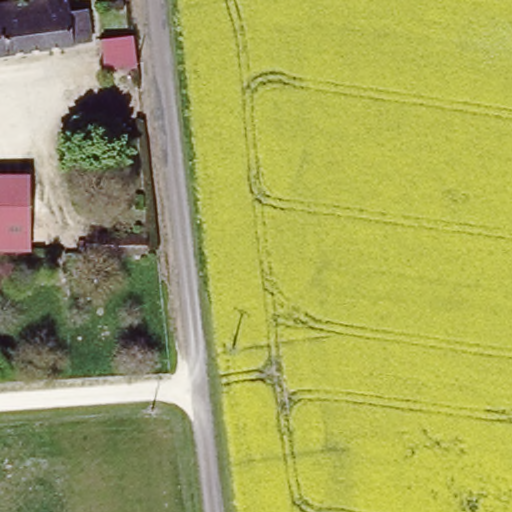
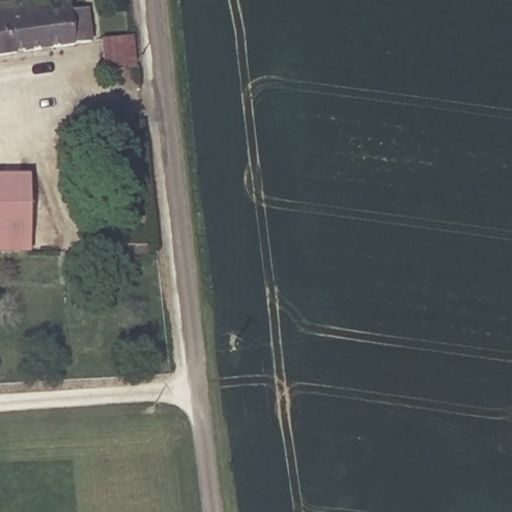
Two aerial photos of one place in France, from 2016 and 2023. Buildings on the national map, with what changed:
unchanged [(76,4),(89,3),(95,42),(0,53),(0,2),(16,0),(75,0),(76,4)]
unchanged [(137,73),(104,77),(102,56),(101,45),(134,42),(136,58),(137,73)]
unchanged [(30,251),(0,250),(0,174),(30,174),(30,251)]
unchanged [(143,231),(144,253),(85,255),(85,233),(143,231)]

